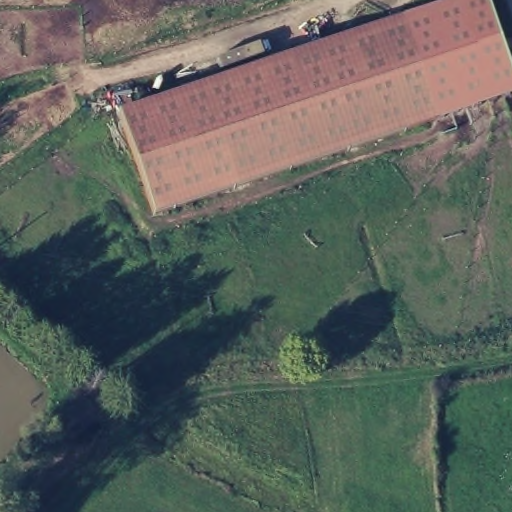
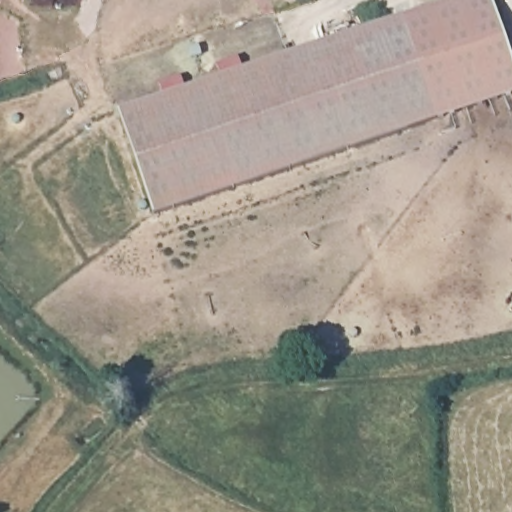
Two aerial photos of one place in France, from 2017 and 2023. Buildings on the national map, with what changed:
unchanged [(117,111),(447,0),(493,0),(512,60),(512,94),(152,216),(117,111)]

